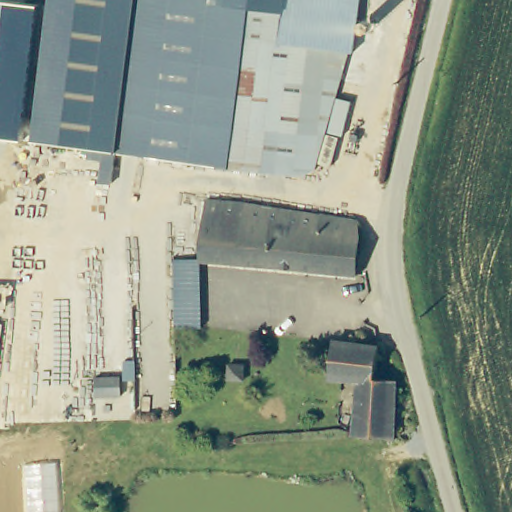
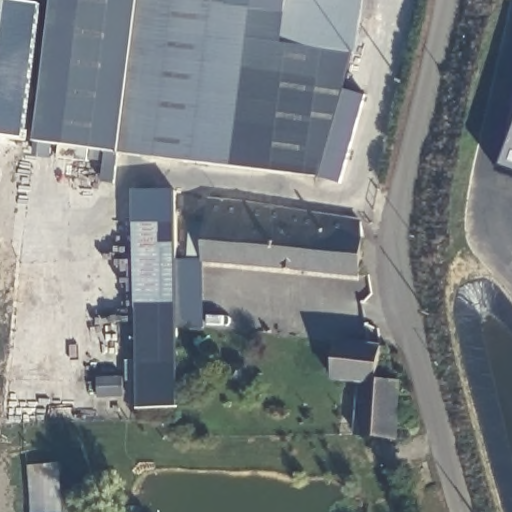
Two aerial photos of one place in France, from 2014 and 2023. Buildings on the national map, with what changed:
unchanged [(25,141),(0,137),(0,0),(41,5),(25,141)]
unchanged [(56,0),(364,0),(360,33),(377,36),(368,82),(345,80),(317,176),(41,143),(56,0)]
new [(175,191),(175,258),(188,257),(190,222),(206,224),(202,260),(204,328),(175,328),(179,408),(136,410),(136,381),(125,381),(125,361),(135,361),(130,190),(175,191)]
unchanged [(202,260),(209,200),(281,209),(358,222),(361,238),(357,276),(202,260)]
demolished [(179,237),(180,224),(199,226),(197,239),(179,237)]
unchanged [(375,380),(397,383),(396,441),(352,435),(359,383),(331,379),(335,342),(378,347),(375,380)]

